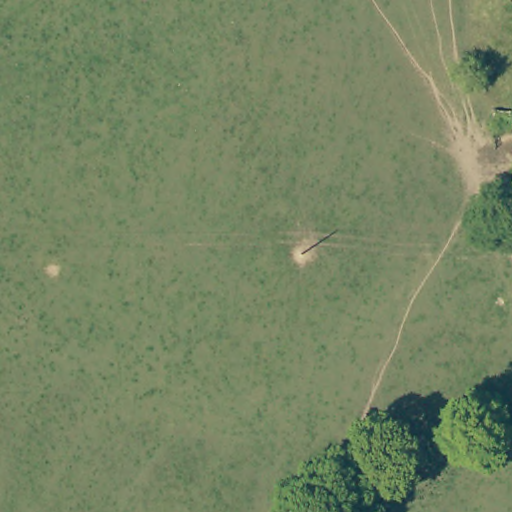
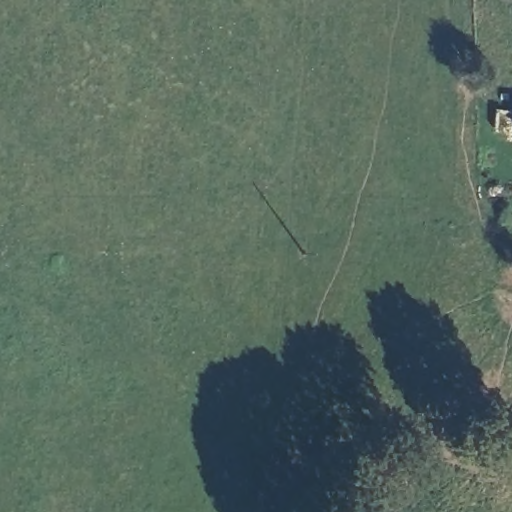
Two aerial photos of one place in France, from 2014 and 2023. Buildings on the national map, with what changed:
unchanged [(505,133),(508,112),(512,113),(512,134),(505,133)]

